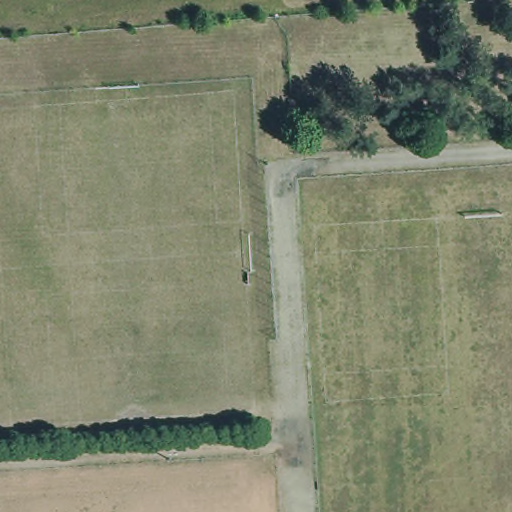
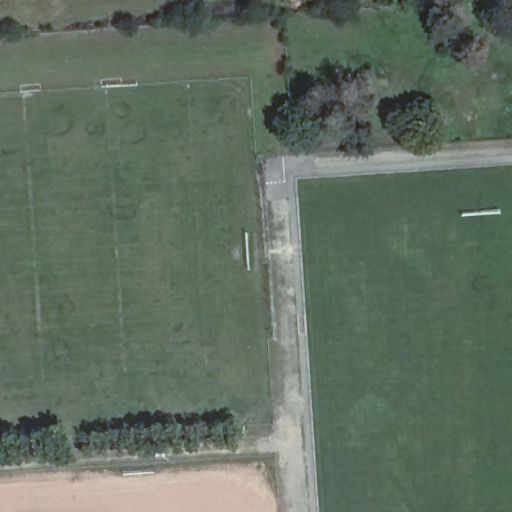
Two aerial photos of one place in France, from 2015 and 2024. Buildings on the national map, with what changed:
[]

